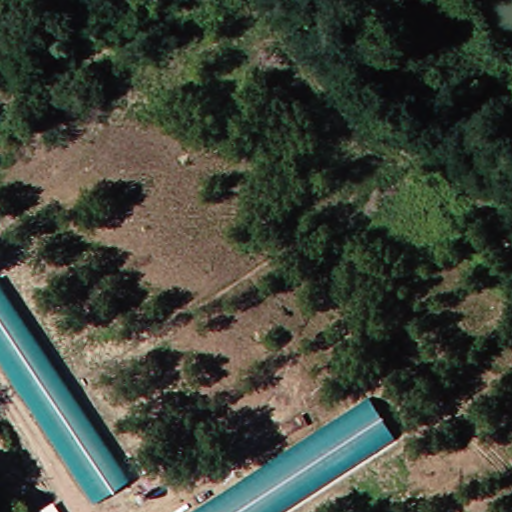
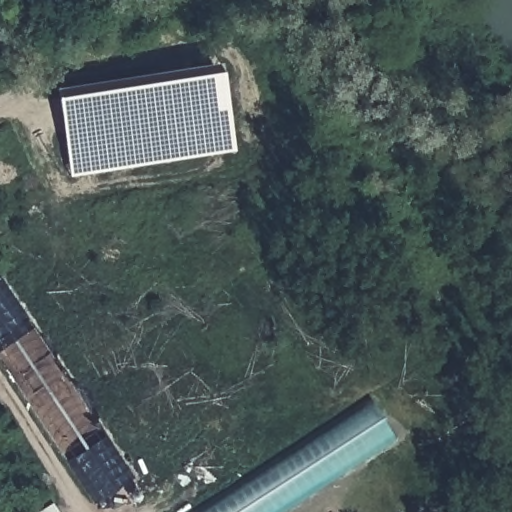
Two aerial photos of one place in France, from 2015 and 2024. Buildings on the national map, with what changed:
new [(224,71),(236,151),(84,175),(83,171),(72,173),(60,96),(224,71)]
unchanged [(0,363),(0,275),(15,300),(124,478),(85,502),(0,363)]
unchanged [(390,442),(274,512),(184,512),(366,402),(390,442)]

